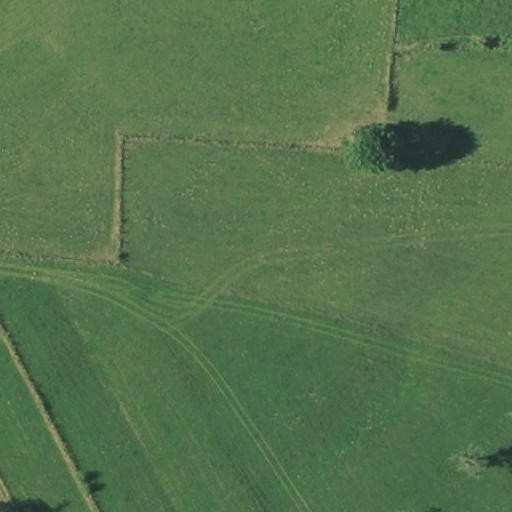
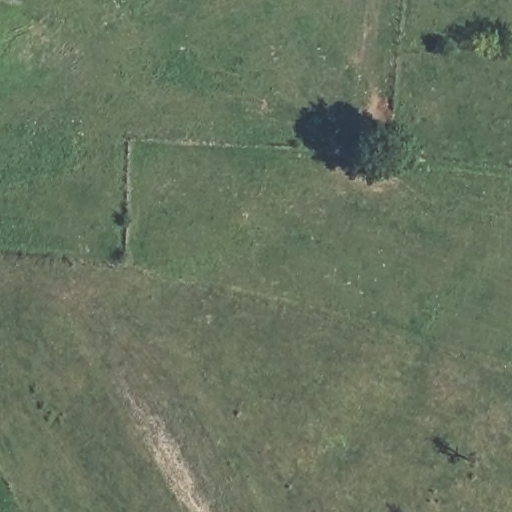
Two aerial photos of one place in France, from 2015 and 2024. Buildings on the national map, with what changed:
unchanged [(359,126),(391,128),(392,154),(359,153),(359,126)]

